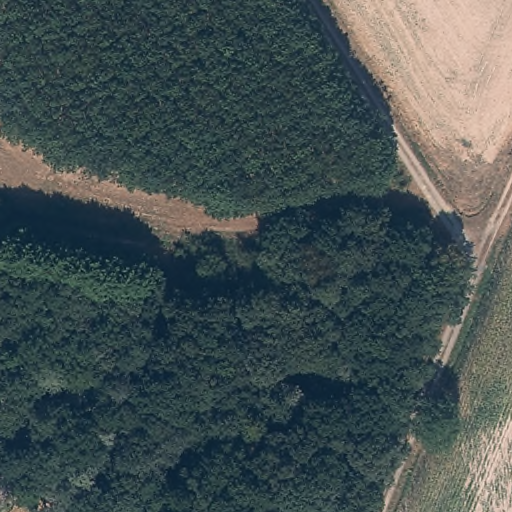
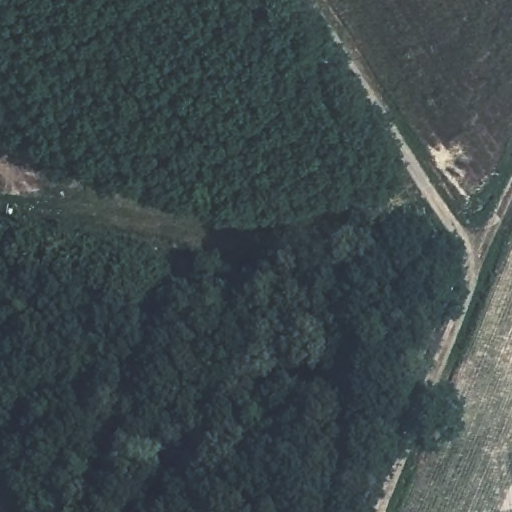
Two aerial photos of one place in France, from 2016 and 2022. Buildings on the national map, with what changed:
unchanged [(102,392),(88,423),(57,407),(71,377),(102,392)]

